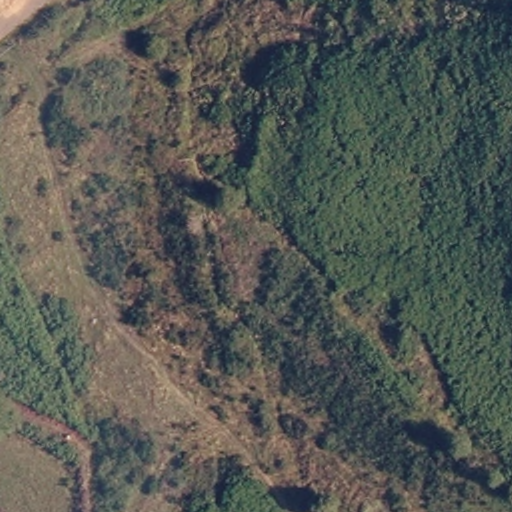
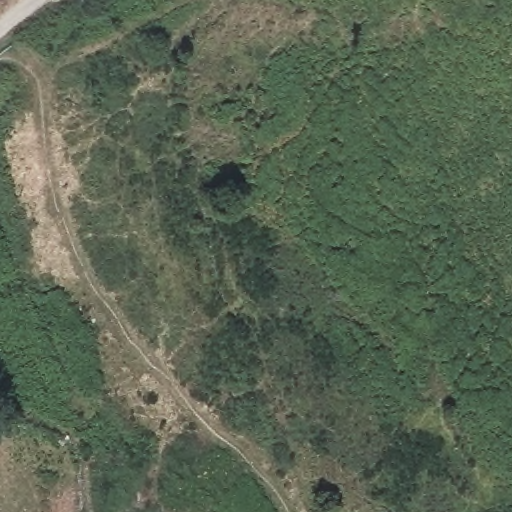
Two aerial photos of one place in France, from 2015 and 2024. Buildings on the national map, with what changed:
[]

